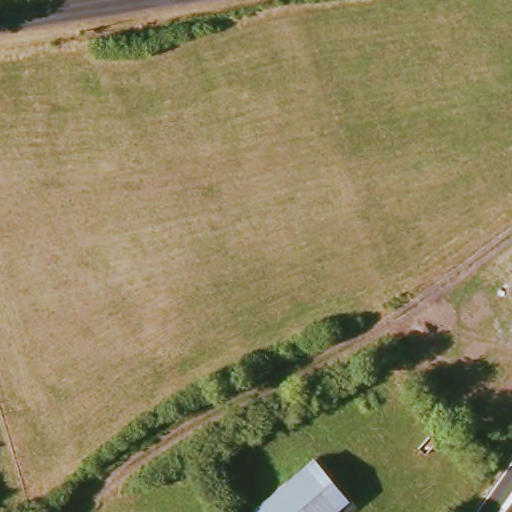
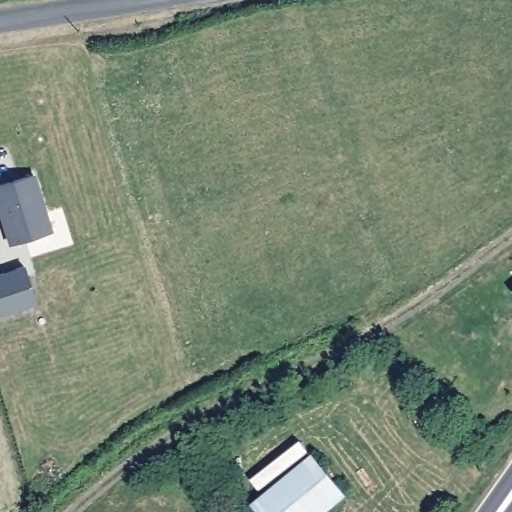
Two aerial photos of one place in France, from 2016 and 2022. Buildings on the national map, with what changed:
new [(0,215),(0,185),(35,174),(54,232),(10,246),(0,215)]
unchanged [(350,502),(337,512),(258,512),(316,464),(350,502)]

